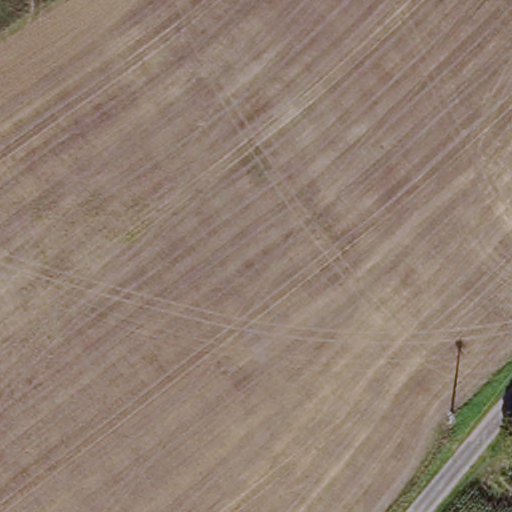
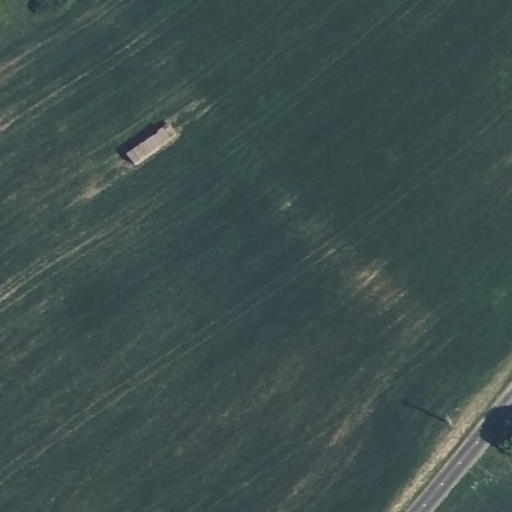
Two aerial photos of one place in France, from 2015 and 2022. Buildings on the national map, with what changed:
unchanged [(511,383),(504,390),(498,383),(505,377),(511,383)]

